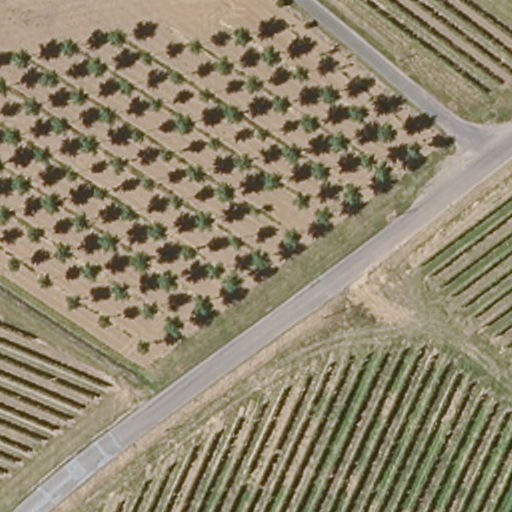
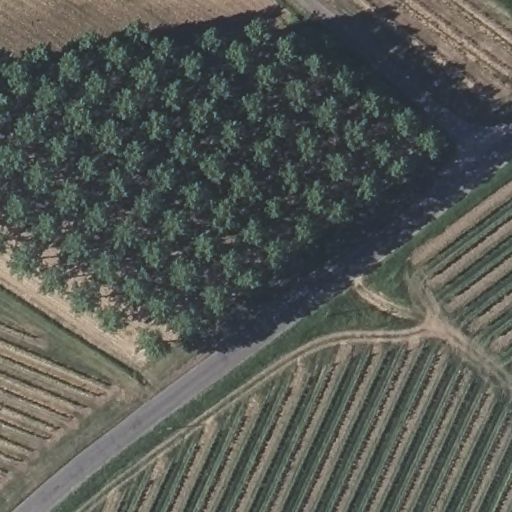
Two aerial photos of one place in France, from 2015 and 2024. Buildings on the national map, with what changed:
[]

